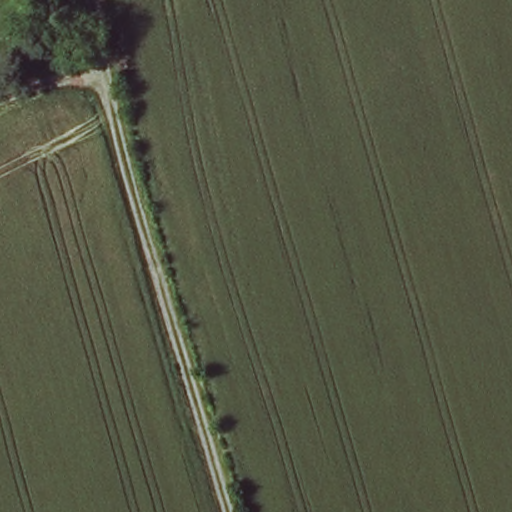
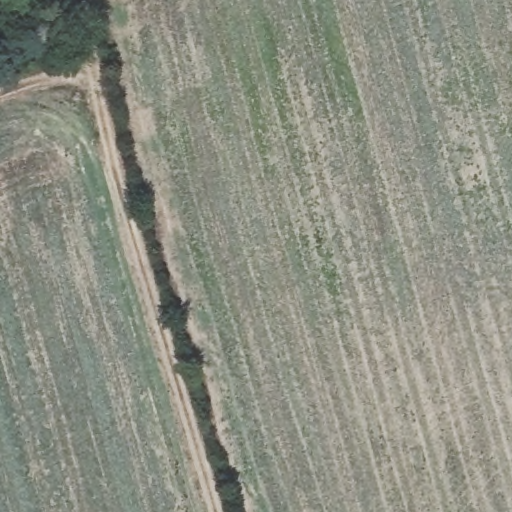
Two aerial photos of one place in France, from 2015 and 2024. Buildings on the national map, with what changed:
[]

